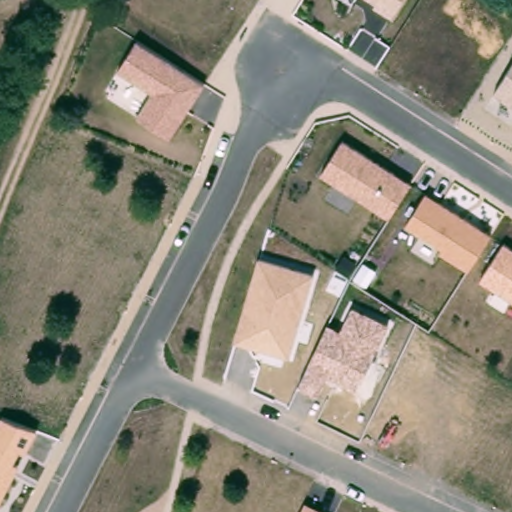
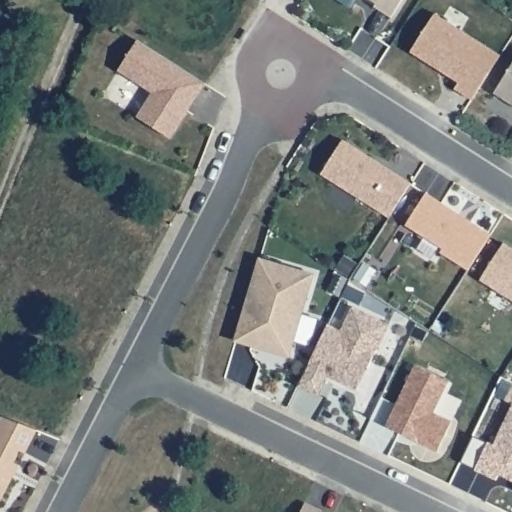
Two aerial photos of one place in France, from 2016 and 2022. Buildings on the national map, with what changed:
unchanged [(392,15),(374,5),(376,1),(374,0),(403,0),(392,15)]
new [(433,12),(498,53),(470,98),(453,87),(457,80),(409,50),(433,12)]
unchanged [(136,116),(151,92),(117,70),(138,40),(202,82),(169,135),(136,116)]
unchanged [(512,105),(493,92),(512,64),(512,105)]
unchanged [(321,173),(342,139),(409,182),(390,216),(321,173)]
unchanged [(425,193),(491,234),(467,270),(437,252),(441,246),(405,223),(425,193)]
unchanged [(503,243),(512,248),(512,300),(479,279),(503,243)]
unchanged [(259,258),(313,273),(290,356),(235,341),(259,258)]
unchanged [(325,324),(341,332),(354,306),(389,324),(358,390),(328,376),(320,396),(298,386),(325,324)]
new [(385,425),(414,364),(447,380),(432,411),(451,420),(436,450),(417,441),(399,432),(385,425)]
unchanged [(2,415),(38,429),(26,453),(20,451),(14,461),(20,465),(0,506),(0,419),(2,415)]
unchanged [(323,510),(323,512),(300,512),(305,502),(323,510)]

